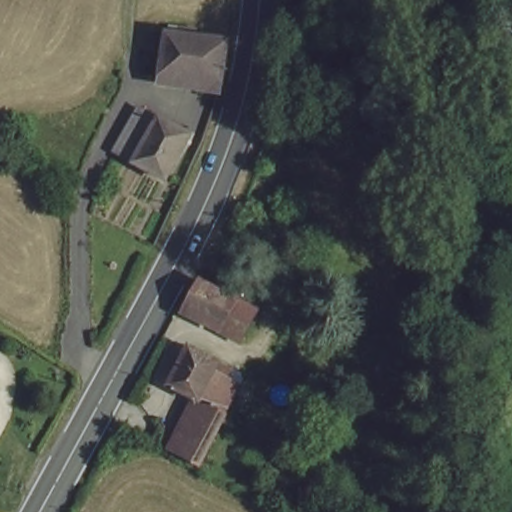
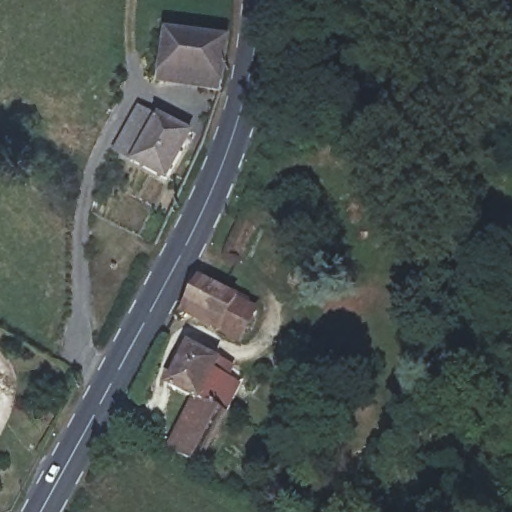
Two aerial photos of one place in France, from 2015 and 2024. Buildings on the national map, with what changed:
unchanged [(158,85),(163,49),(175,36),(219,41),(212,94),(158,85)]
unchanged [(129,168),(115,160),(144,103),(157,110),(129,168)]
unchanged [(195,129),(166,187),(129,168),(157,110),(195,129)]
unchanged [(237,344),(217,333),(176,312),(196,279),(235,300),(254,311),(237,344)]
unchanged [(168,447),(188,408),(161,393),(185,350),(210,363),(236,377),(226,395),(192,460),(168,447)]

